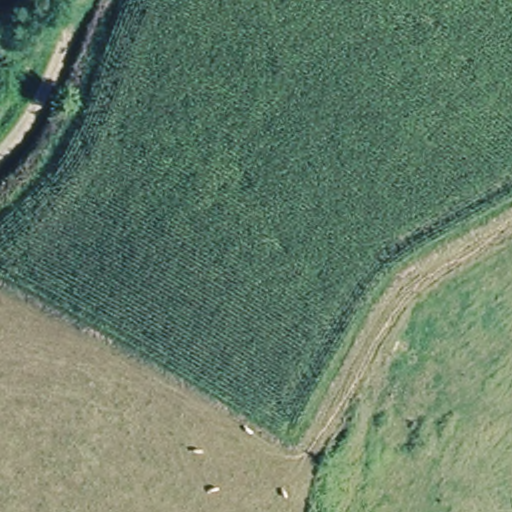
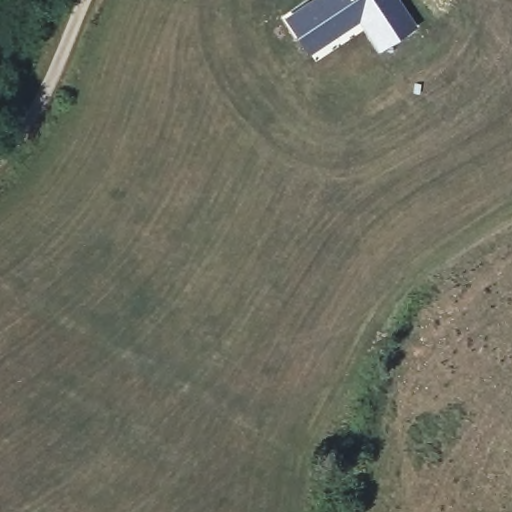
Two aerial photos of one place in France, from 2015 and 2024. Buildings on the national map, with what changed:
new [(401,0),(417,25),(378,51),(358,23),(309,56),(281,18),(307,0),(401,0)]

